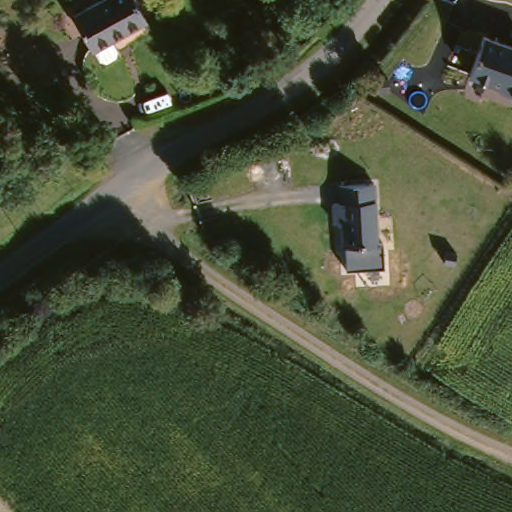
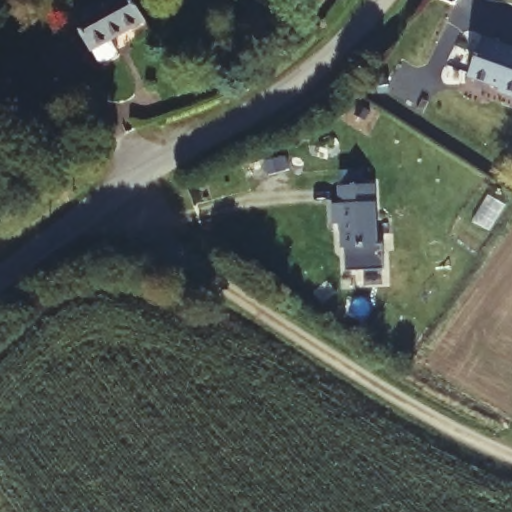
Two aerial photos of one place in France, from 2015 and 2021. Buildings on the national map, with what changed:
unchanged [(132,0),(142,18),(104,38),(110,49),(107,55),(97,60),(91,58),(85,47),(84,47),(67,12),(91,0),(132,0)]
unchanged [(498,94),(500,90),(468,79),(482,40),(512,51),(512,99),(498,94)]
unchanged [(373,251),(338,253),(337,229),(329,229),(327,209),(335,209),(333,191),(368,189),(373,251)]

